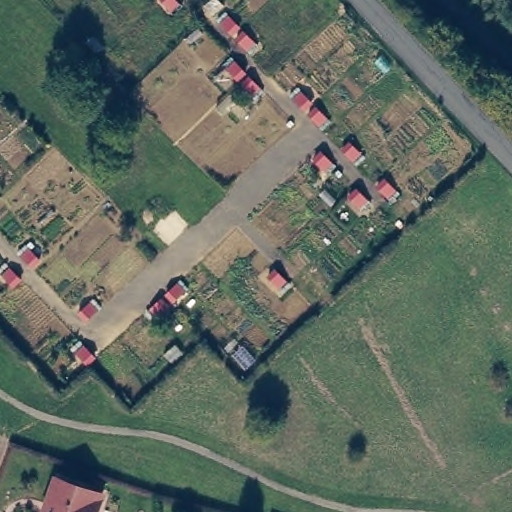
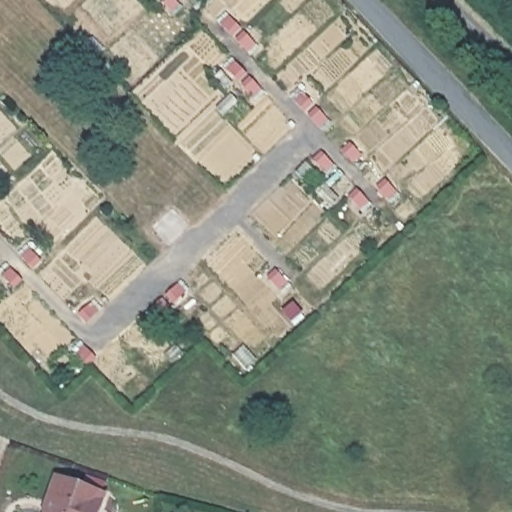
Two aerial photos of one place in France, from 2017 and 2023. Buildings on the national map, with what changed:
unchanged [(42,512),(55,474),(98,490),(90,512),(42,512)]

